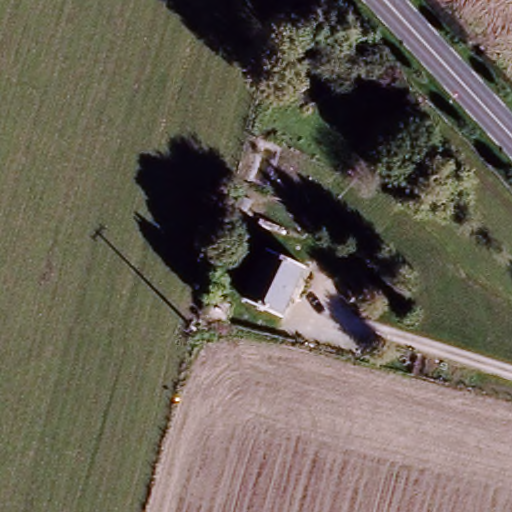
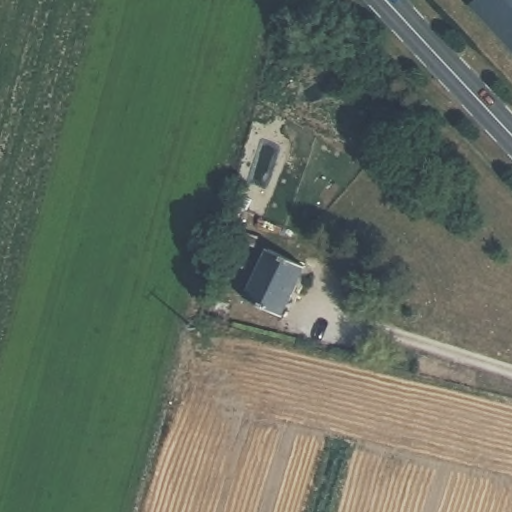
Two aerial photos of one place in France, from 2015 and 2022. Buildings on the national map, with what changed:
new [(512,0),(512,46),(475,6),(482,0),(512,0)]
unchanged [(275,317),(243,304),(263,256),(295,270),(275,317)]

